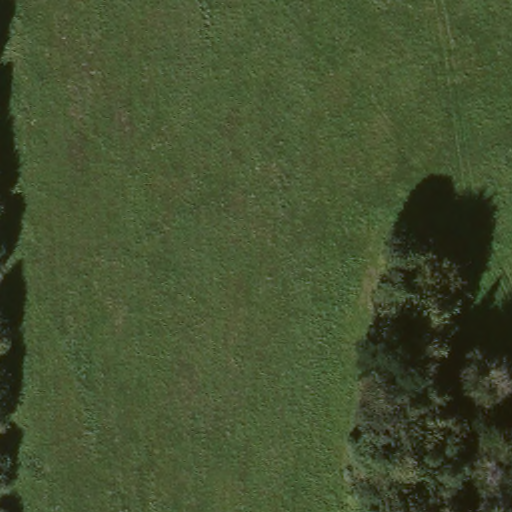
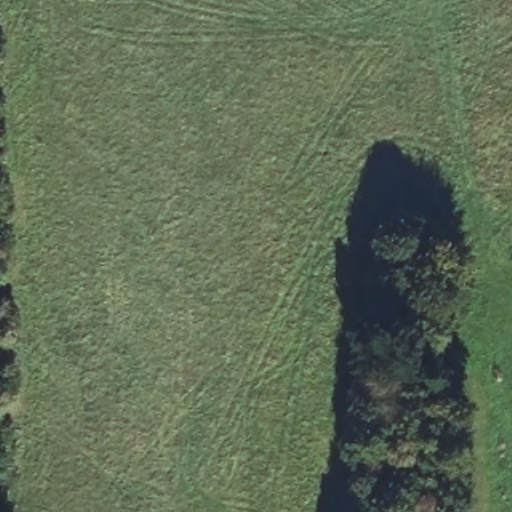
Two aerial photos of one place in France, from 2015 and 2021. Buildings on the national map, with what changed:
[]

